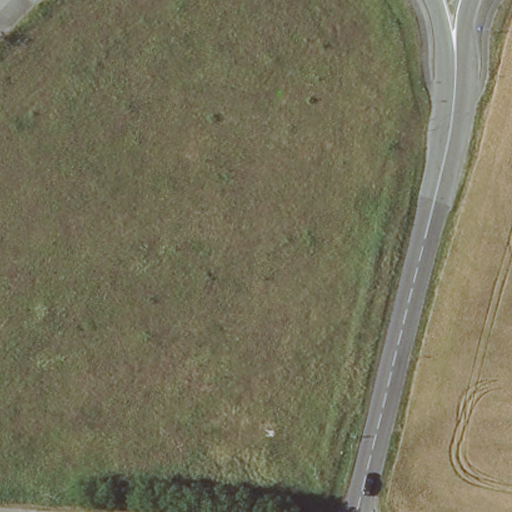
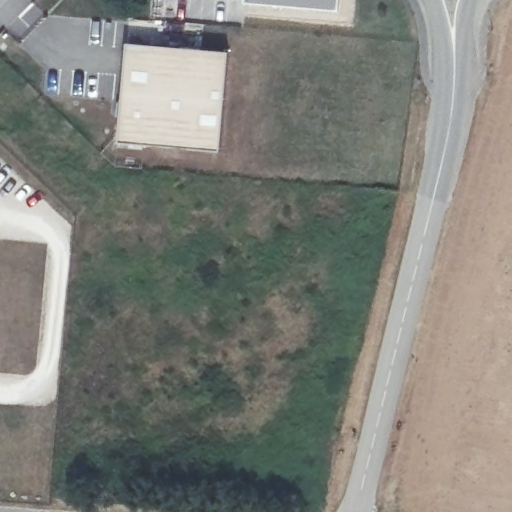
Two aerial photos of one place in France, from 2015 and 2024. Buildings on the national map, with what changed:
new [(339,10),(244,2),(244,0),(340,0),(339,10)]
new [(124,73),(127,44),(230,51),(222,151),(118,142),(120,109),(109,109),(113,72),(124,73)]

